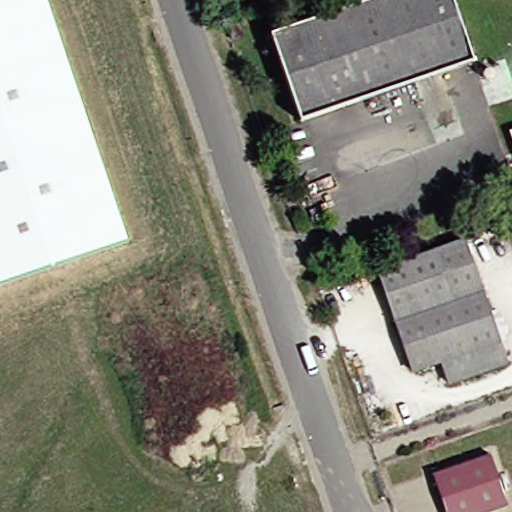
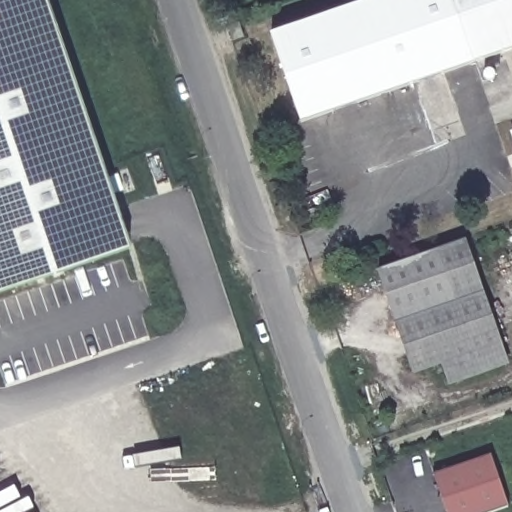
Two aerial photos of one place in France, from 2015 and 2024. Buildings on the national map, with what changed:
unchanged [(0,284),(0,0),(53,0),(131,242),(0,284)]
unchanged [(274,31),(370,0),(456,0),(476,62),(302,119),(274,31)]
new [(476,62),(456,0),(512,0),(512,50),(476,62)]
unchanged [(245,24),(231,29),(224,10),(238,5),(245,24)]
unchanged [(389,268),(467,242),(484,292),(398,320),(382,270),(389,268)]
unchanged [(484,292),(499,339),(507,365),(450,384),(443,362),(414,371),(413,368),(398,320),(484,292)]
unchanged [(440,474),(497,454),(512,498),(512,508),(500,512),(453,512),(440,474)]

